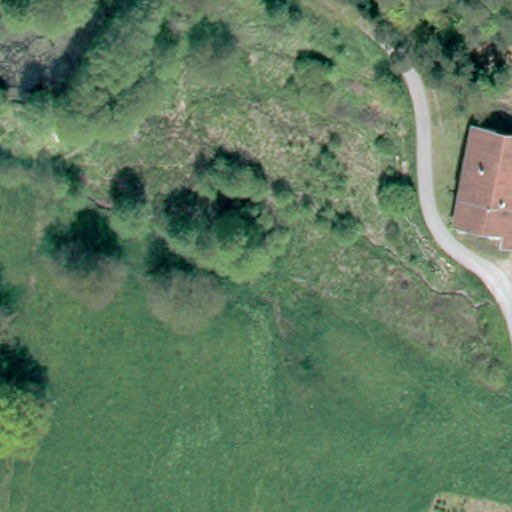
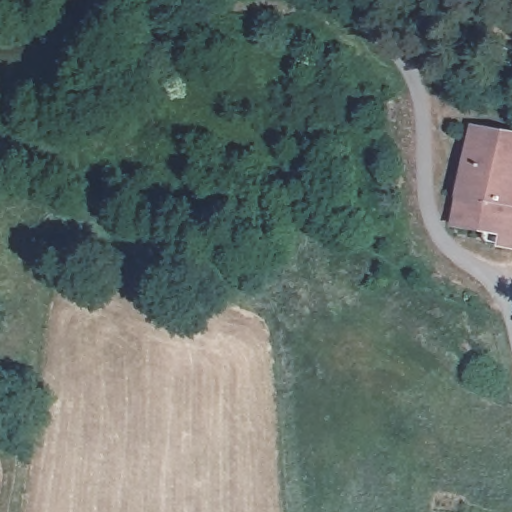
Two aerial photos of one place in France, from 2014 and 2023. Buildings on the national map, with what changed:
unchanged [(508,244),(457,234),(473,132),(512,140),(512,258),(506,257),(508,244)]

